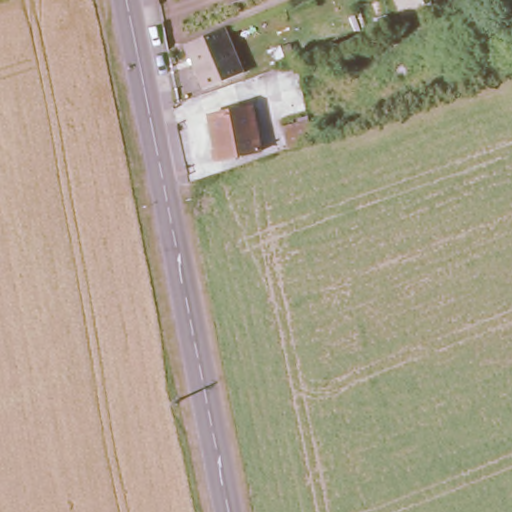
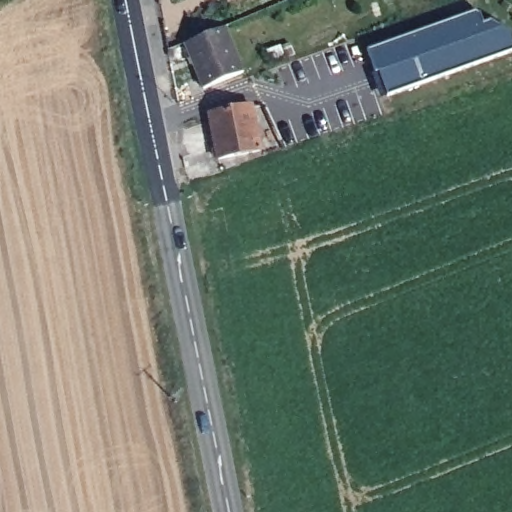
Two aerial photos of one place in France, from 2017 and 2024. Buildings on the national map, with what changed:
new [(379,99),(371,75),(367,76),(360,54),(479,12),(484,15),(487,25),(494,21),(512,32),(512,51),(379,99)]
unchanged [(243,67),(205,82),(187,39),(227,22),(243,67)]
unchanged [(262,151),(220,160),(211,115),(252,106),(262,151)]

